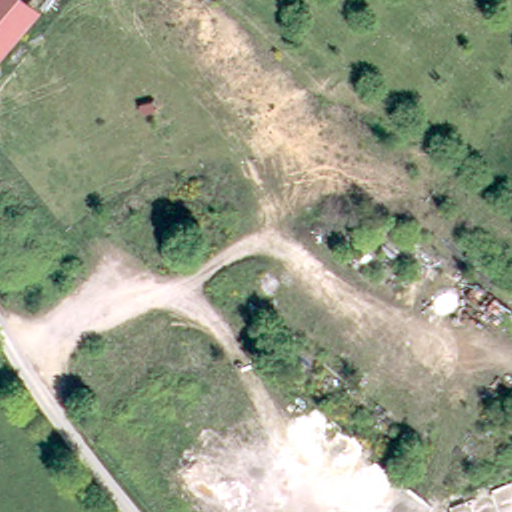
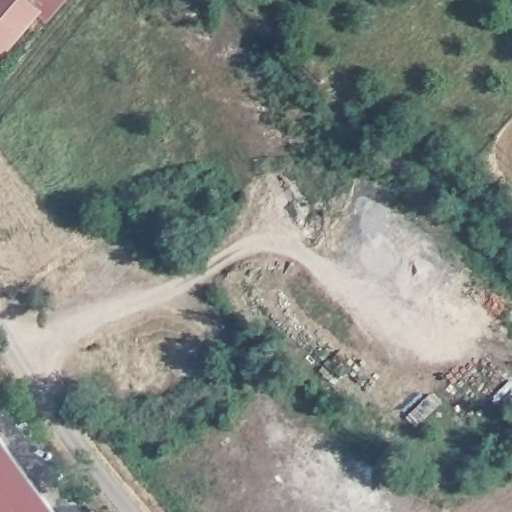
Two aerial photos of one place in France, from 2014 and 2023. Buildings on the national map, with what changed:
unchanged [(0,56),(0,0),(13,0),(32,17),(0,56)]
new [(0,439),(54,512),(0,512),(0,439)]

